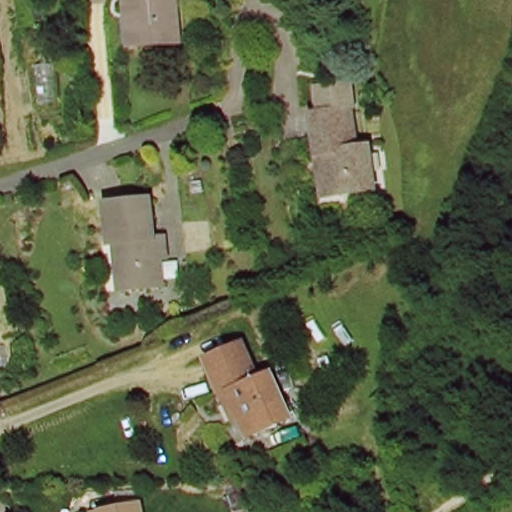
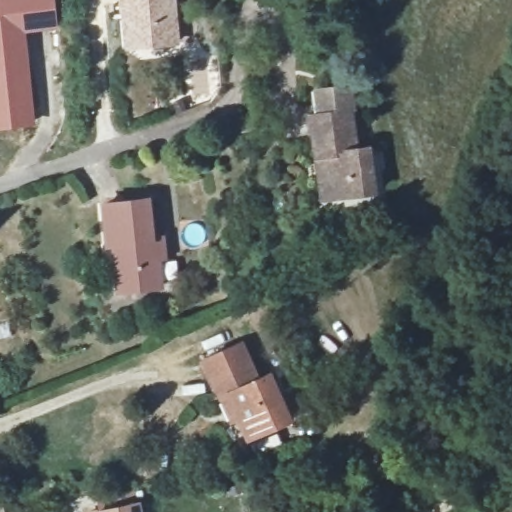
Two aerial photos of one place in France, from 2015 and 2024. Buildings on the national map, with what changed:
new [(59,30),(28,35),(38,126),(0,131),(0,0),(56,0),(59,30)]
unchanged [(181,43),(127,49),(123,0),(177,0),(181,43)]
unchanged [(320,160),(314,116),(323,116),(320,91),(353,88),(356,112),(355,112),(360,154),(375,152),(376,195),(335,198),(324,199),(320,160)]
unchanged [(153,190),(155,220),(166,217),(167,258),(160,258),(159,281),(125,283),(123,265),(106,265),(103,192),(153,190)]
unchanged [(204,358),(245,335),(256,366),(272,365),(290,420),(247,435),(204,358)]
unchanged [(135,512),(97,512),(133,505),(135,512)]

